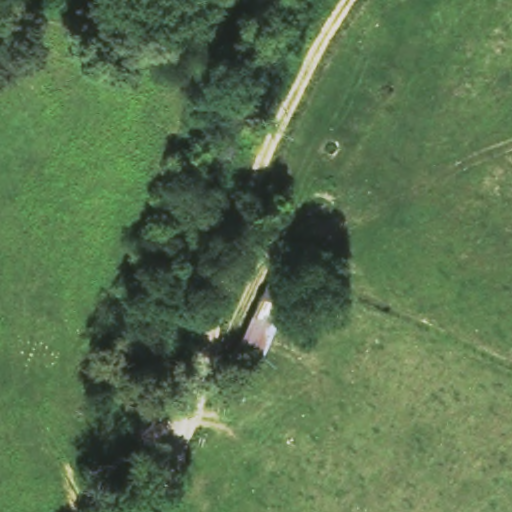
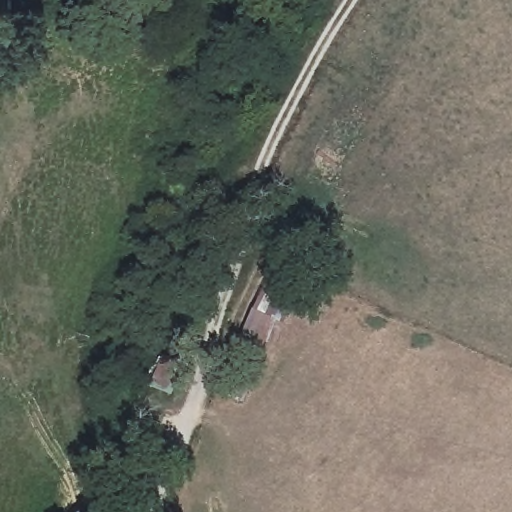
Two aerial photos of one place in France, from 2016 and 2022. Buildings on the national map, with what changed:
unchanged [(265,260),(293,275),(238,396),(210,387),(265,260)]

